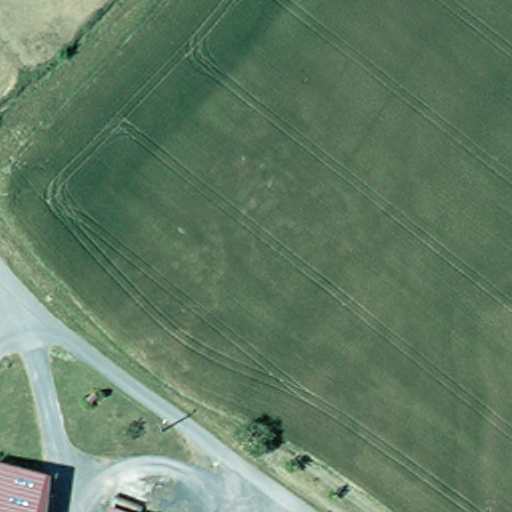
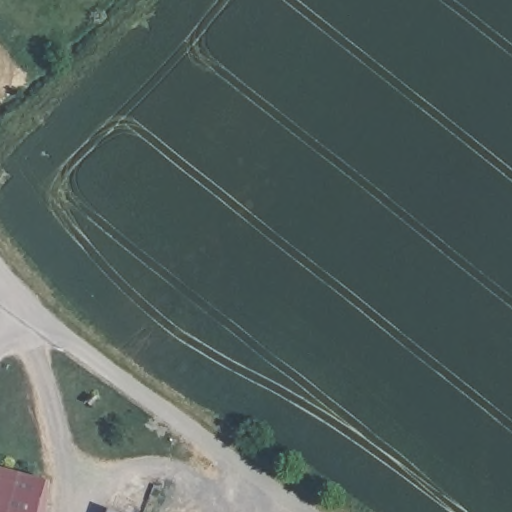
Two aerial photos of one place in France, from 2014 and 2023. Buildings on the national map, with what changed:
unchanged [(49,512),(0,512),(0,467),(52,480),(49,512)]
unchanged [(112,509),(118,512),(111,512),(112,509)]

